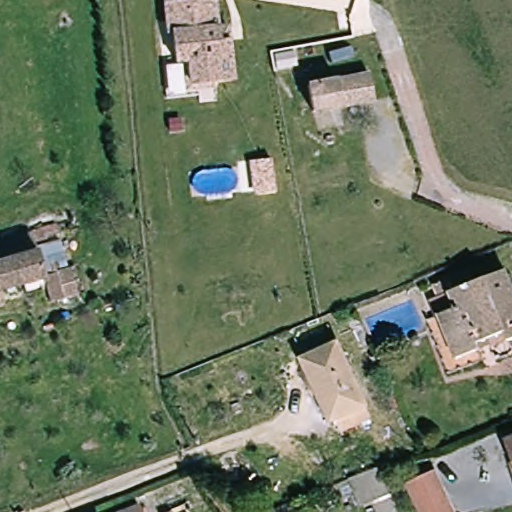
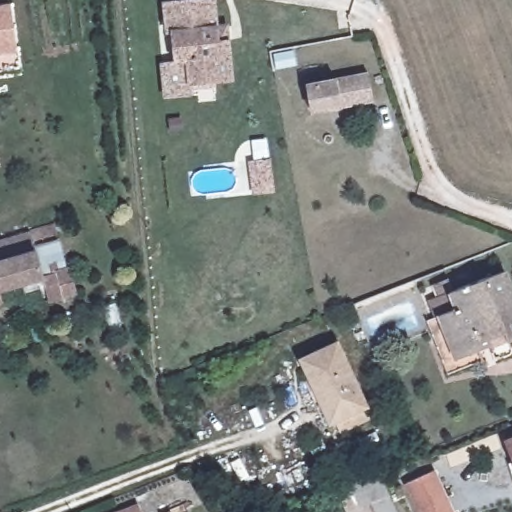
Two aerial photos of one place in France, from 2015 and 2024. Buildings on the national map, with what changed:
unchanged [(221,30),(230,30),(232,45),(235,84),(193,87),(191,65),(178,65),(176,36),(171,36),(169,6),(219,2),(221,30)]
new [(19,51),(0,54),(0,5),(12,4),(19,51)]
unchanged [(367,73),(371,99),(310,110),(306,84),(367,73)]
unchanged [(77,273),(83,296),(55,302),(49,280),(1,292),(0,293),(0,242),(35,232),(48,277),(79,267),(80,272),(77,273)]
unchanged [(512,279),(512,343),(509,335),(483,344),(489,361),(451,375),(432,321),(438,318),(431,301),(440,297),(436,284),(452,278),(457,291),(509,271),(512,279)]
unchanged [(375,344),(364,348),(350,318),(360,314),(375,344)]
unchanged [(343,342),(373,407),(372,408),(377,420),(344,434),(339,423),(334,425),(303,360),(343,342)]
unchanged [(512,439),(512,447),(509,440),(512,439)]
unchanged [(379,512),(377,506),(364,512),(353,481),(384,469),(403,512),(379,512)]
unchanged [(462,512),(426,512),(414,484),(443,472),(462,512)]
unchanged [(144,512),(123,512),(141,506),(144,512)]

